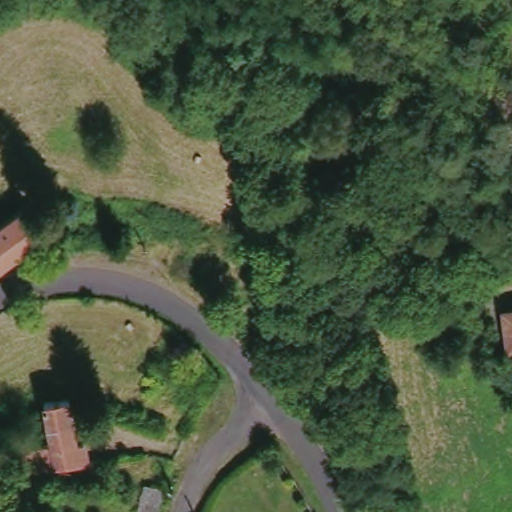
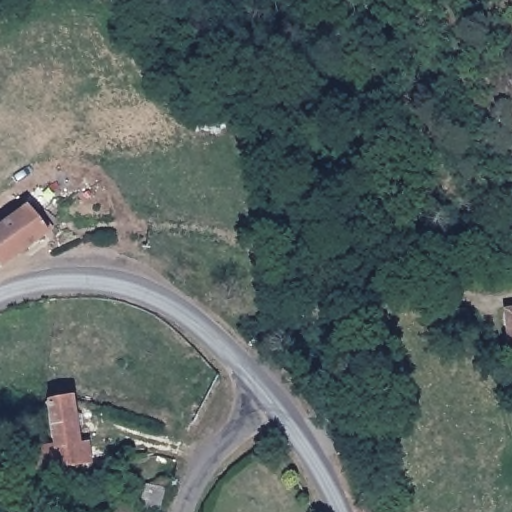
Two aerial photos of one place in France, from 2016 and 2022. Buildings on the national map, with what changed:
unchanged [(0,265),(0,223),(19,211),(38,240),(0,265)]
unchanged [(510,353),(502,311),(512,308),(512,353),(510,353)]
unchanged [(58,465),(21,472),(16,455),(47,445),(45,424),(41,402),(55,400),(72,397),(80,438),(88,437),(91,460),(58,465)]

